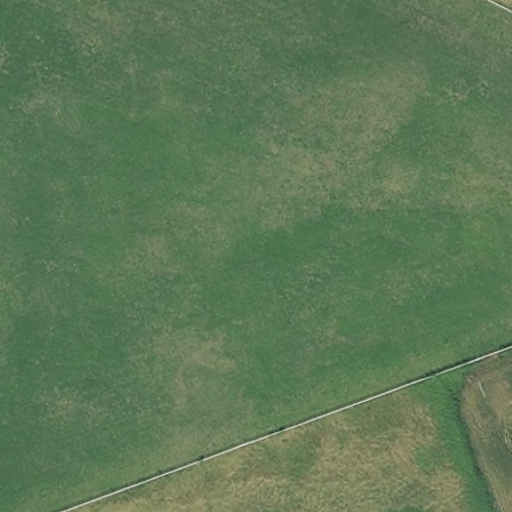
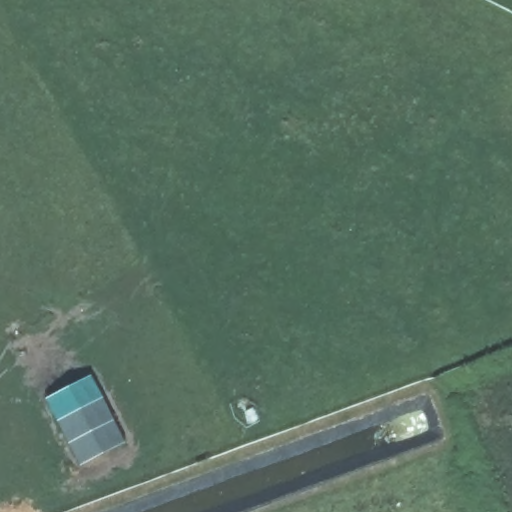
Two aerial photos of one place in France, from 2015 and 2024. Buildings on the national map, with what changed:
new [(91,373),(125,441),(80,465),(44,397),(91,373)]

